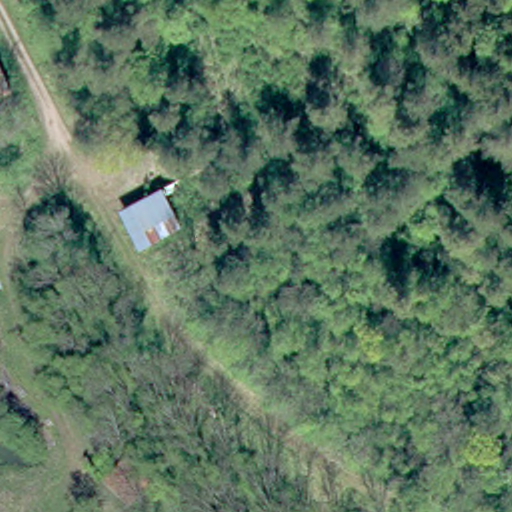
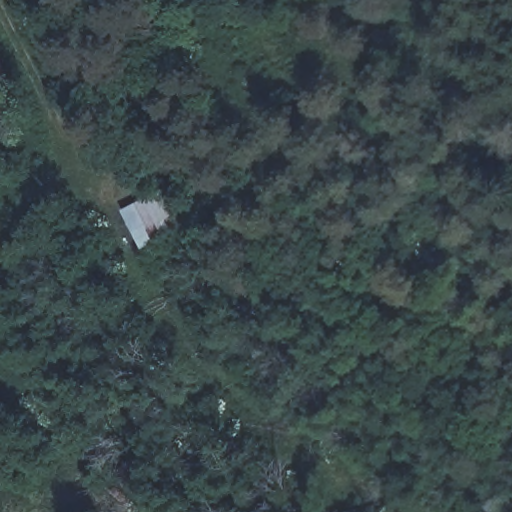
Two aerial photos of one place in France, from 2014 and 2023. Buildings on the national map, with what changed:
unchanged [(188,226),(139,251),(118,213),(166,183),(188,226)]

